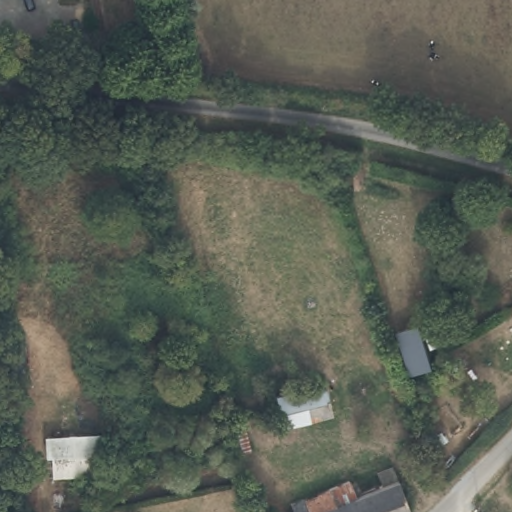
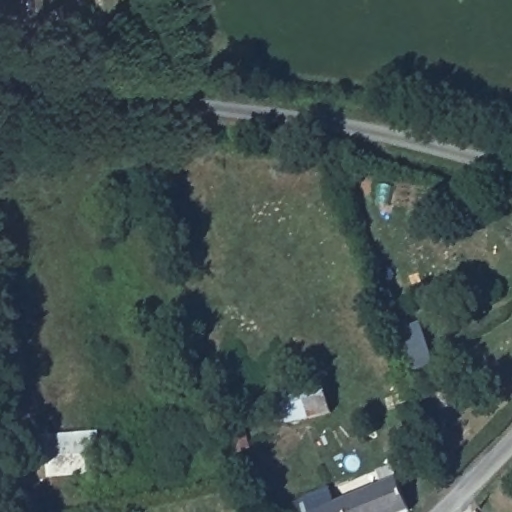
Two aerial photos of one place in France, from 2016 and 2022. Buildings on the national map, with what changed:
unchanged [(281,395),(327,385),(333,415),(286,426),(281,395)]
unchanged [(300,498),(357,475),(363,490),(383,479),(378,469),(391,462),(410,507),(399,512),(303,512),(300,498)]

